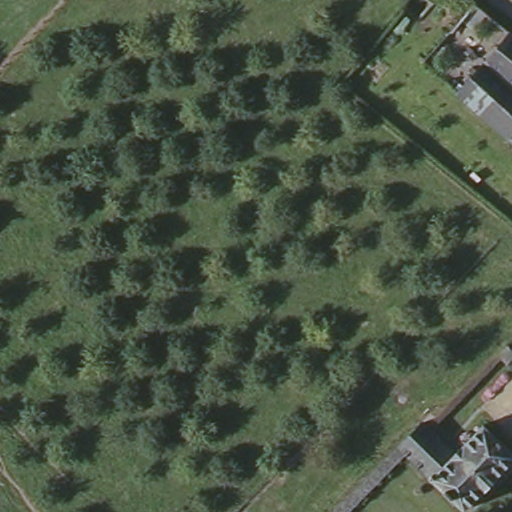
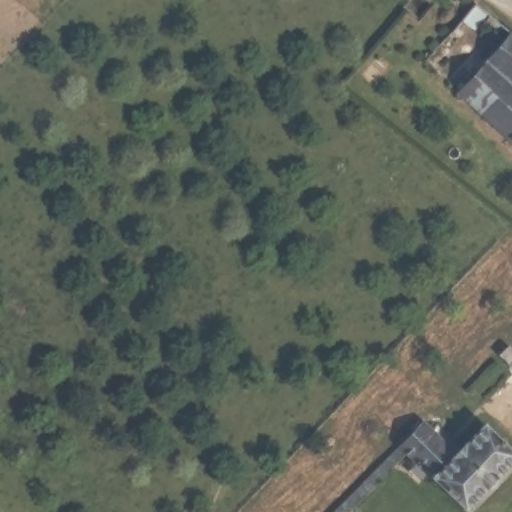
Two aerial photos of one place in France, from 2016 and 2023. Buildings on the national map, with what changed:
unchanged [(512,34),(512,140),(455,91),(512,34)]
unchanged [(512,367),(498,355),(507,343),(512,348),(512,367)]
unchanged [(459,453),(489,424),(512,446),(512,465),(470,509),(410,453),(351,512),(337,512),(427,422),(459,453)]

